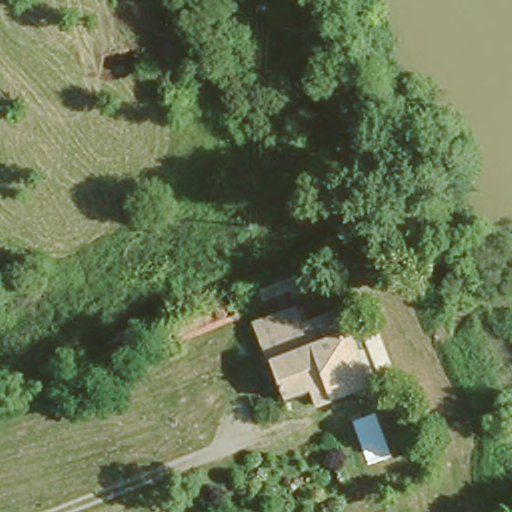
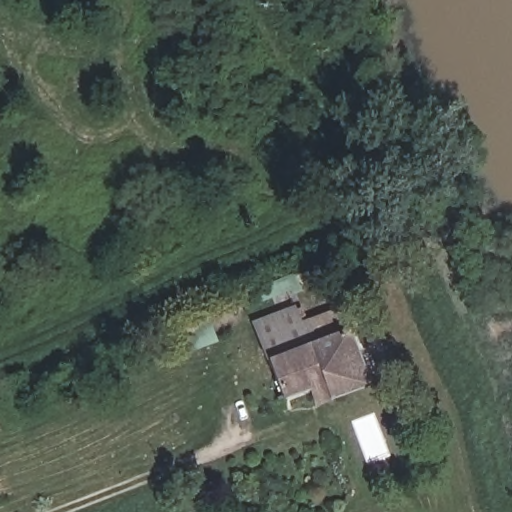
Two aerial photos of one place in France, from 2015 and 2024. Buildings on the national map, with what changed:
unchanged [(304,293),(311,309),(338,299),(347,323),(351,322),(371,379),(319,398),(310,378),(287,387),(256,310),(304,293)]

